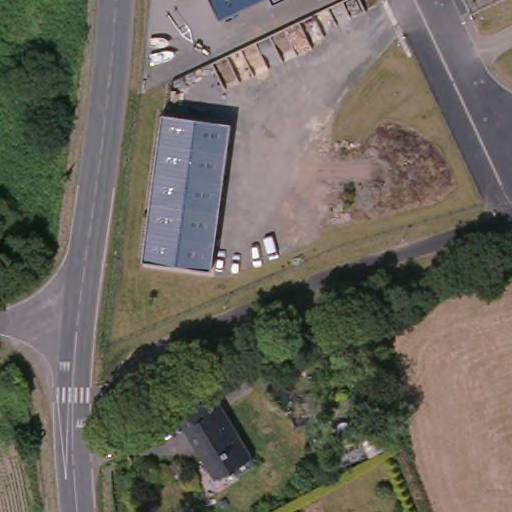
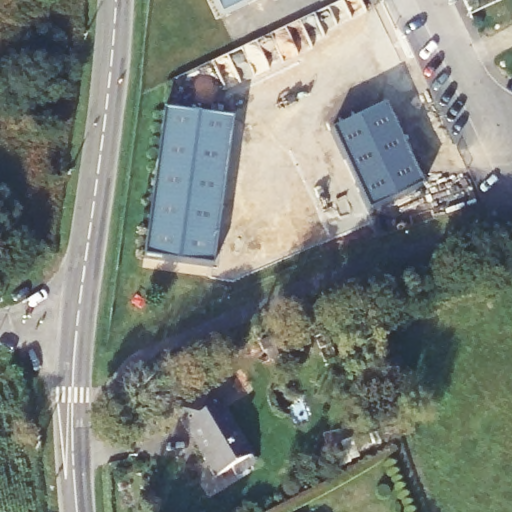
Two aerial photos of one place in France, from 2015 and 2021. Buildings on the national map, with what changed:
unchanged [(221,16),(213,0),(256,0),(221,16)]
unchanged [(273,1),(272,0),(275,0),(273,1)]
new [(386,104),(426,184),(373,210),(332,130),(386,104)]
unchanged [(211,266),(144,258),(164,112),(231,121),(211,266)]
unchanged [(214,382),(261,465),(239,479),(233,467),(218,475),(178,404),(214,382)]

